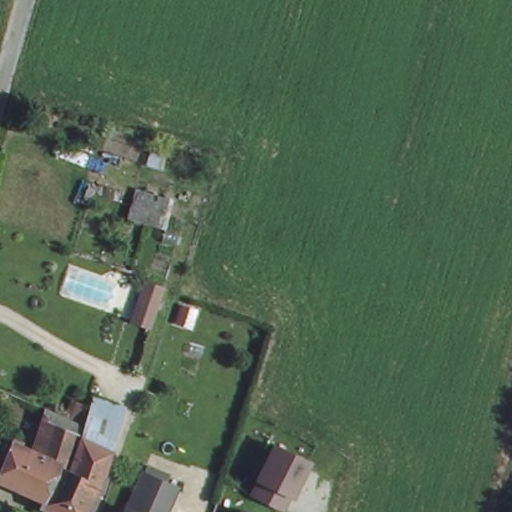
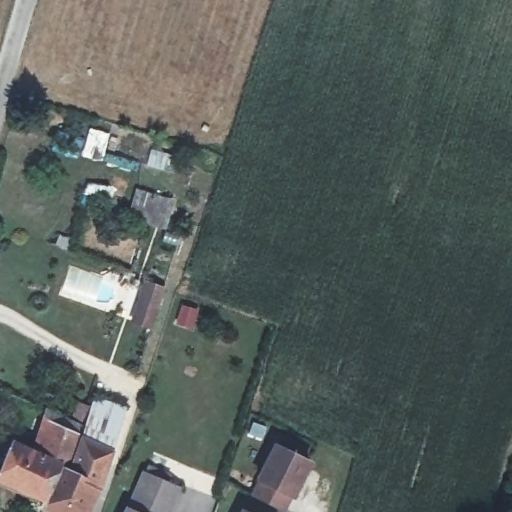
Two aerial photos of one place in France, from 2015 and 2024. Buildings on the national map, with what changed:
unchanged [(97,405),(123,414),(111,454),(86,440),(97,405)]
unchanged [(72,469),(63,467),(62,470),(47,502),(0,481),(0,477),(15,444),(43,456),(57,426),(47,422),(51,410),(86,425),(72,469)]
unchanged [(251,488),(258,474),(256,473),(272,439),(306,456),(289,490),(287,489),(280,503),(251,488)]
unchanged [(76,474),(86,440),(111,454),(98,495),(88,512),(52,512),(44,509),(47,502),(62,470),(76,474)]
unchanged [(129,506),(131,507),(137,491),(144,470),(179,483),(172,504),(169,512),(125,512),(129,506)]
unchanged [(239,505),(253,512),(235,512),(239,505)]

